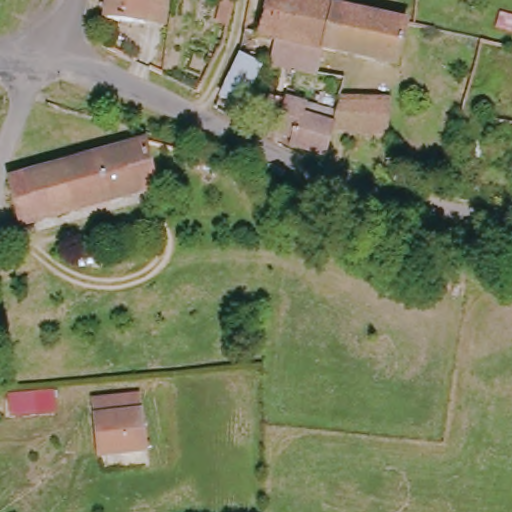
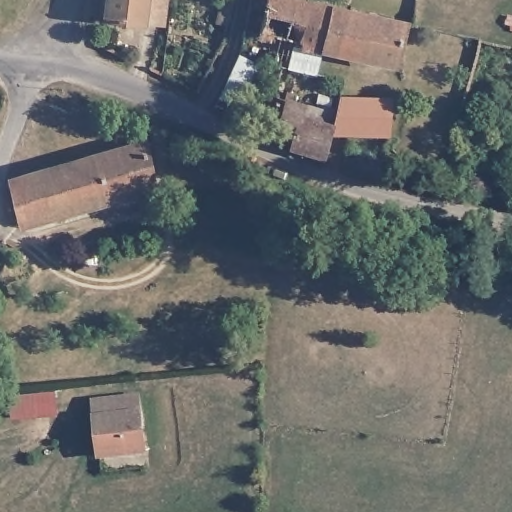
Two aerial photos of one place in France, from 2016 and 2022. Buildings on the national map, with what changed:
unchanged [(137,21),(98,19),(99,0),(138,0),(137,21)]
unchanged [(326,7),(404,23),(393,72),(315,54),(310,79),(264,71),(269,45),(252,42),(262,0),(297,0),(326,7)]
unchanged [(231,53),(259,67),(237,109),(211,98),(231,53)]
unchanged [(347,130),(326,129),(328,122),(335,100),(385,100),(378,131),(347,130)]
unchanged [(320,157),(279,144),(282,136),(275,134),(282,108),(306,115),(328,122),(326,129),(320,157)]
unchanged [(136,145),(153,190),(18,227),(1,182),(136,145)]
unchanged [(93,460),(90,404),(135,403),(138,459),(93,460)]

